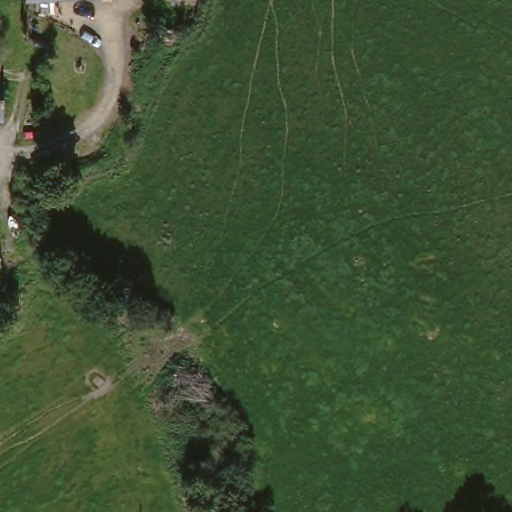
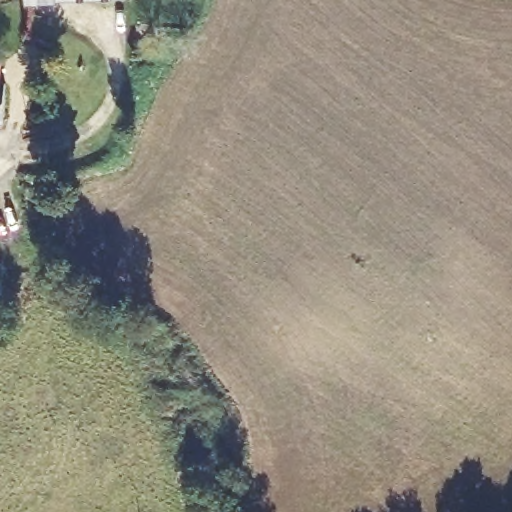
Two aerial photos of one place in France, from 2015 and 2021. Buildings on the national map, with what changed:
unchanged [(20,0),(75,0),(20,2),(20,0)]
unchanged [(0,122),(0,87),(1,87),(0,122)]

